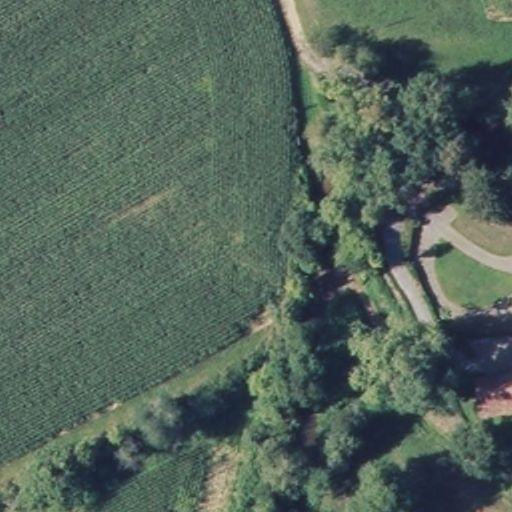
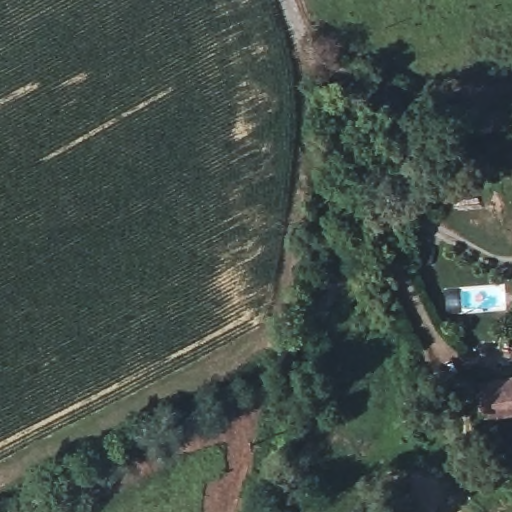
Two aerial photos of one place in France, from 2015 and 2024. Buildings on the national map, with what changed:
unchanged [(512,420),(477,423),(476,396),(512,394),(512,420)]

